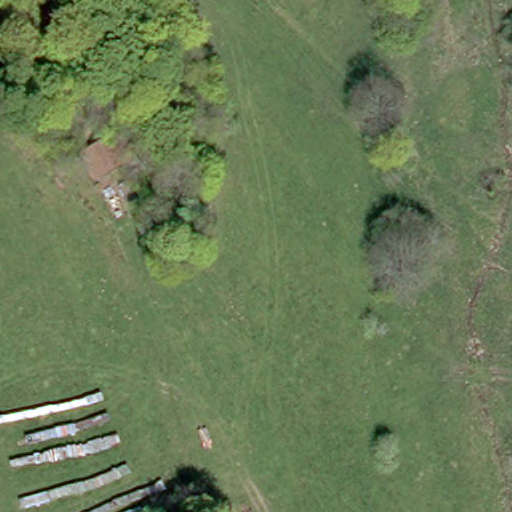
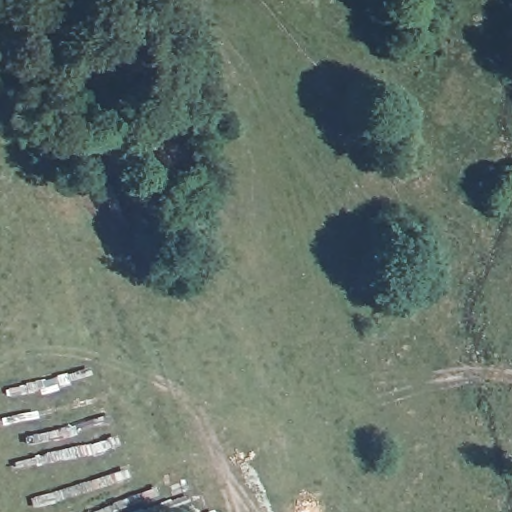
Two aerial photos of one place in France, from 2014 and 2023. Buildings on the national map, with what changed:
unchanged [(73,137),(105,123),(124,164),(94,182),(73,137)]

